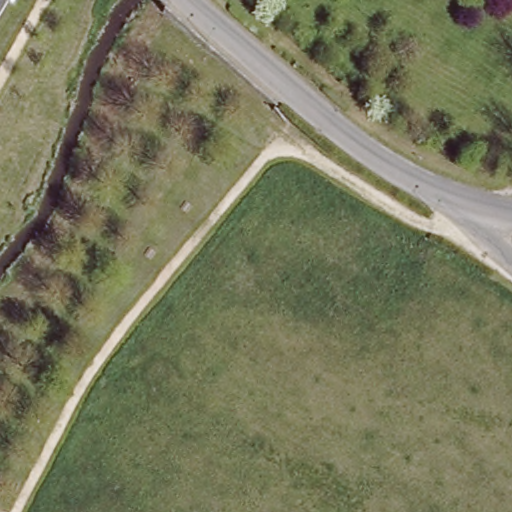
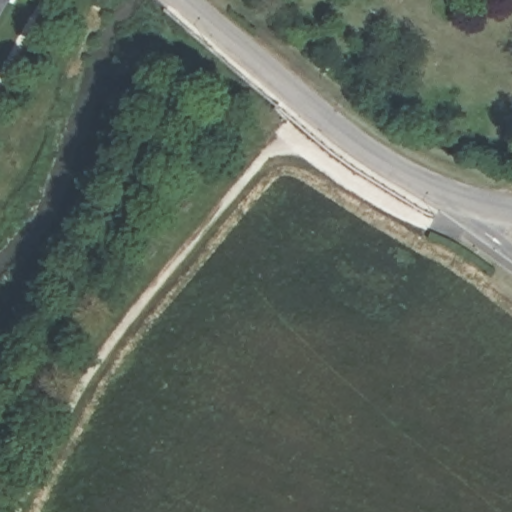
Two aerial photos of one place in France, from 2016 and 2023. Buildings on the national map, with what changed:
unchanged [(0,18),(0,0),(10,0),(0,18)]

